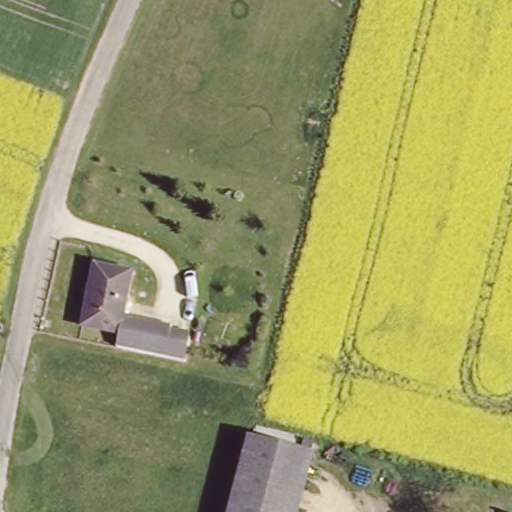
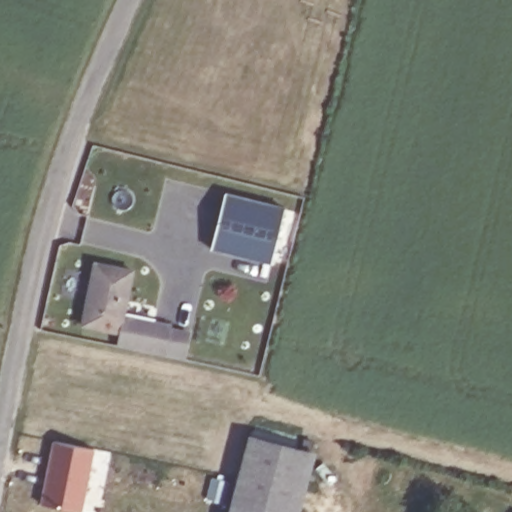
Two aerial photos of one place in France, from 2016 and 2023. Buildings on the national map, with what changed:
new [(225,193),(285,209),(271,265),(211,250),(225,193)]
unchanged [(134,273),(125,315),(173,328),(166,354),(118,345),(121,329),(85,322),(98,264),(134,273)]
unchanged [(314,448),(299,512),(231,512),(241,469),(249,433),(314,448)]
new [(53,439),(92,448),(79,511),(39,503),(53,439)]

